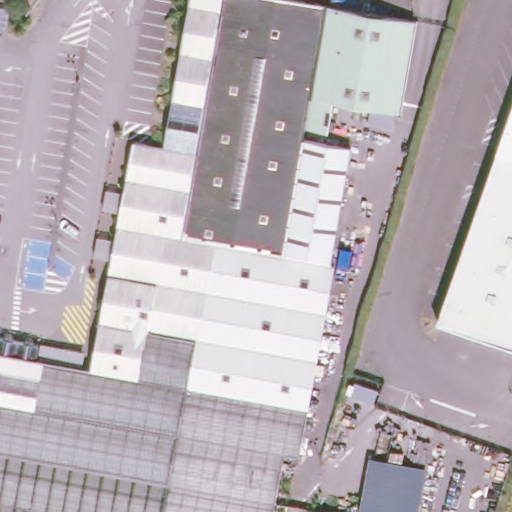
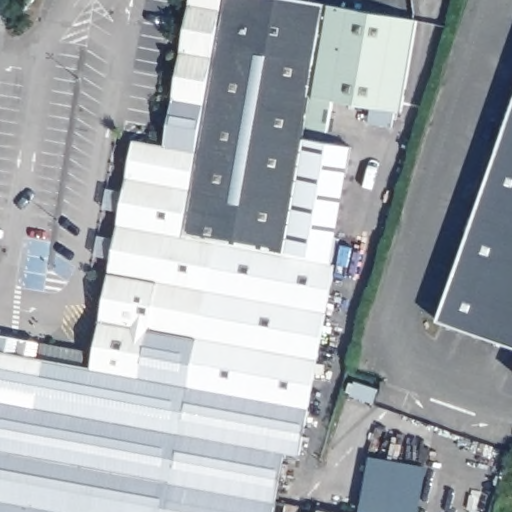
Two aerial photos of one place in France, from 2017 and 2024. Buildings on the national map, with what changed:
unchanged [(0,512),(0,351),(91,368),(135,142),(165,147),(191,0),(295,0),(417,20),(400,114),(396,111),(392,127),(370,122),(373,107),(334,100),(328,130),(305,127),(302,137),(353,146),(300,455),(282,452),(272,512),(0,512)]
unchanged [(512,93),(512,160),(492,152),(512,93)]
unchanged [(512,160),(512,352),(432,323),(492,152),(512,160)]
unchanged [(427,465),(419,512),(359,512),(370,455),(427,465)]
unchanged [(333,512),(320,512),(320,510),(333,512)]

